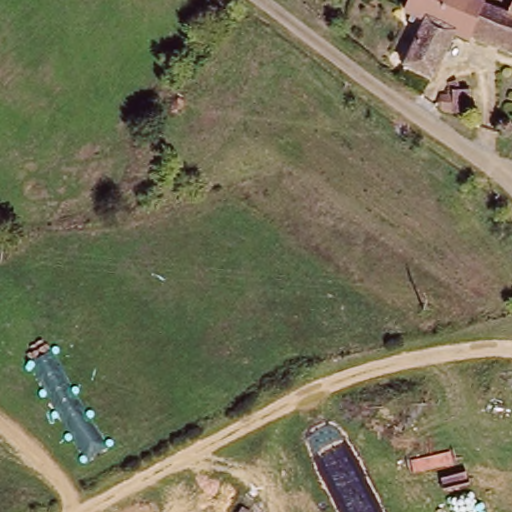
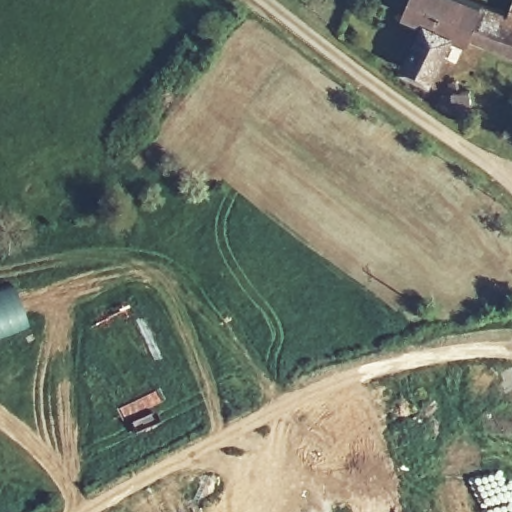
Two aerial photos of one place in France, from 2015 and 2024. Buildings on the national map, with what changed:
unchanged [(512,0),(512,45),(455,23),(434,71),(408,60),(424,24),(403,14),(408,0),(481,0),(509,11),(512,0)]
unchanged [(477,106),(442,106),(443,86),(476,86),(477,106)]
new [(28,327),(0,337),(0,288),(11,284),(28,327)]
demolished [(147,512),(144,512),(146,511),(147,512)]

